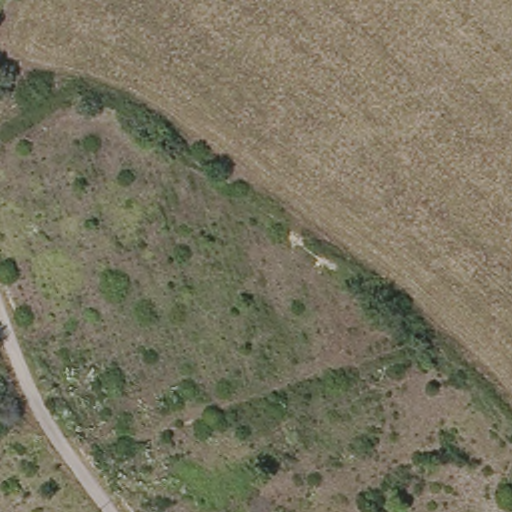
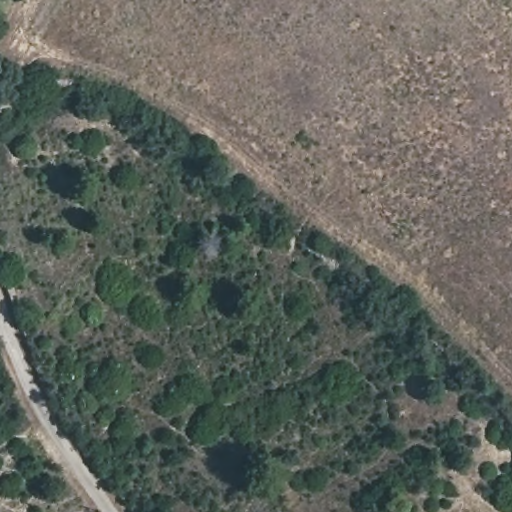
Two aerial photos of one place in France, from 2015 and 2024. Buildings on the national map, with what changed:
[]

